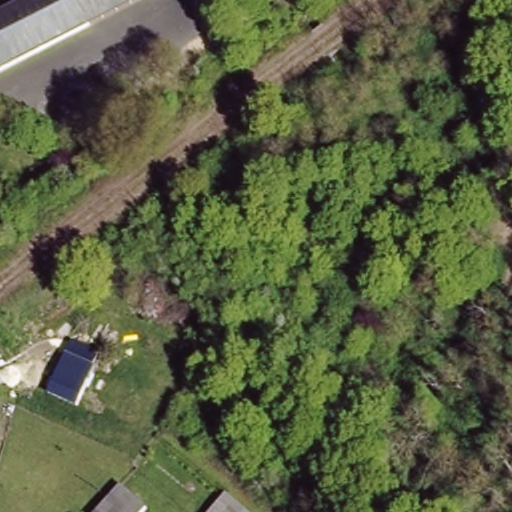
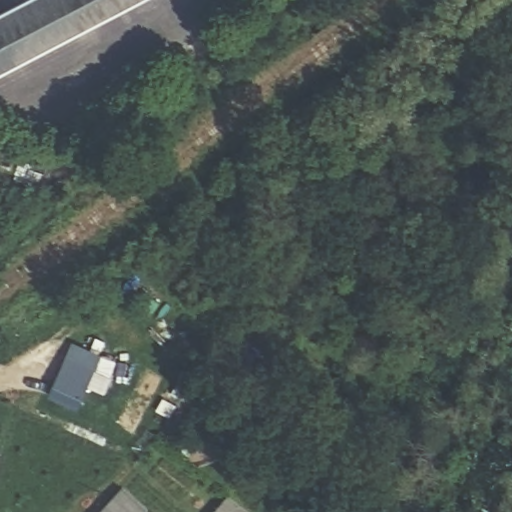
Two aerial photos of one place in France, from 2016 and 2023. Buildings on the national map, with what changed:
unchanged [(26,0),(131,0),(0,68),(0,14),(26,0)]
unchanged [(90,362),(85,374),(90,377),(80,397),(53,385),(67,352),(90,362)]
unchanged [(124,482),(152,505),(146,512),(99,512),(124,482)]
unchanged [(240,495),(261,512),(222,512),(240,495)]

